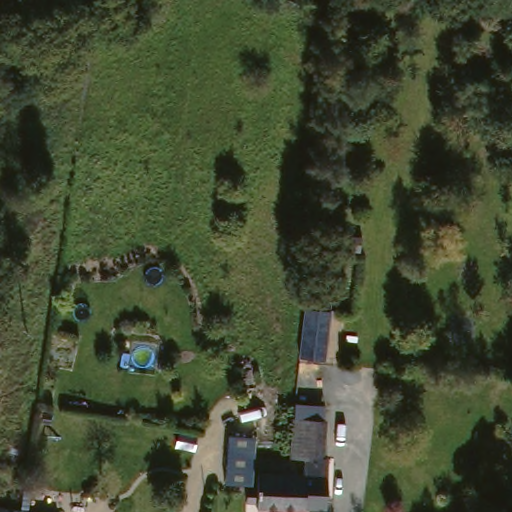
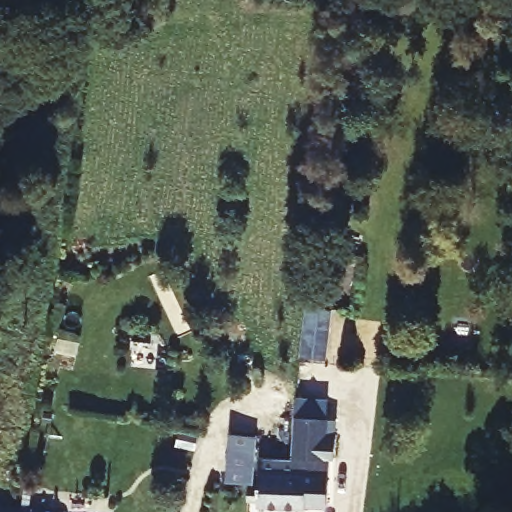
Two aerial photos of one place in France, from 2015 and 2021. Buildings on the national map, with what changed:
unchanged [(303,306),(329,311),(321,364),(295,357),(303,306)]
unchanged [(254,437),(254,473),(300,477),(300,459),(288,458),(286,424),(294,424),(292,402),(324,404),(323,476),(324,510),(254,503),(256,484),(223,482),(224,437),(254,437)]
unchanged [(0,512),(0,506),(3,506),(26,510),(26,512),(0,512)]
unchanged [(34,512),(26,512),(26,510),(34,512)]

